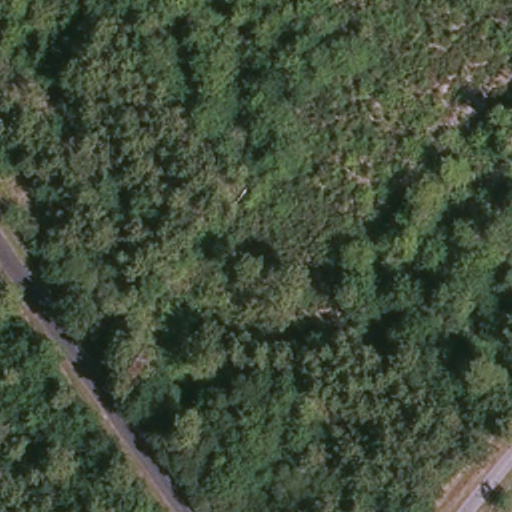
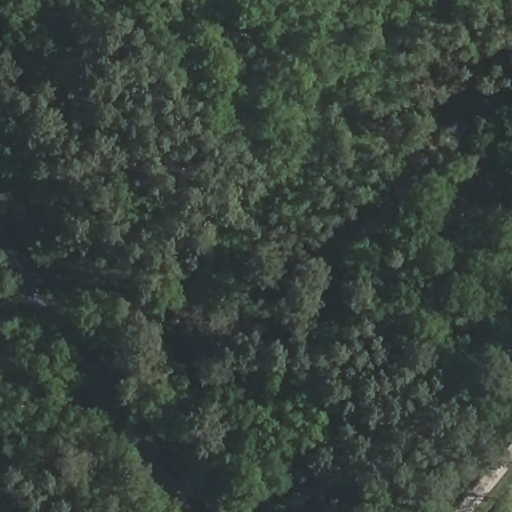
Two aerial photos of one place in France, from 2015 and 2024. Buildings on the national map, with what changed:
[]

